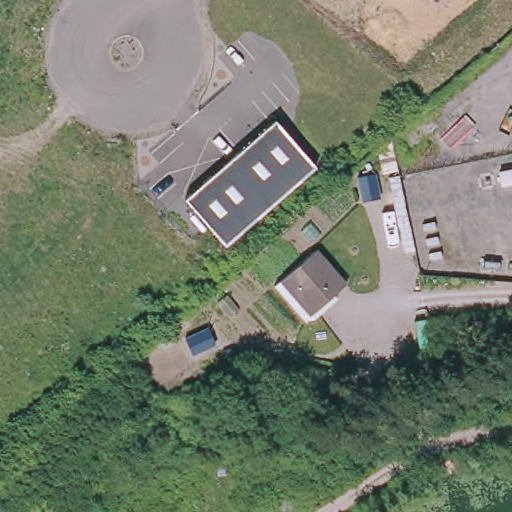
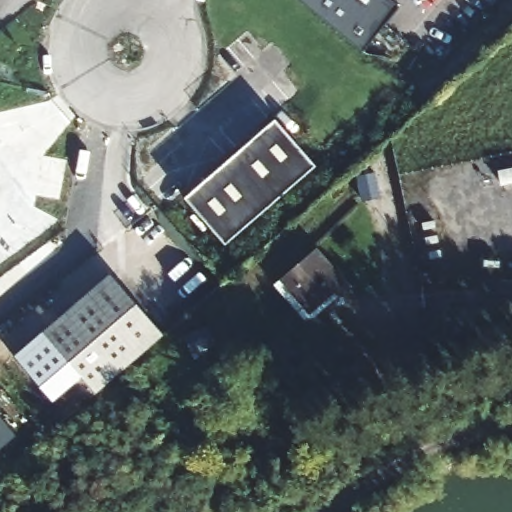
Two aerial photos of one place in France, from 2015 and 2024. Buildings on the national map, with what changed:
new [(301,0),(390,0),(399,7),(364,50),(301,0)]
unchanged [(316,167),(225,245),(184,199),(275,120),(316,167)]
unchanged [(313,252),(341,287),(312,310),(284,277),(313,252)]
new [(108,281),(163,342),(98,397),(44,337),(108,281)]
new [(18,360),(44,337),(80,377),(53,402),(18,360)]
new [(0,456),(0,423),(16,442),(0,456)]

